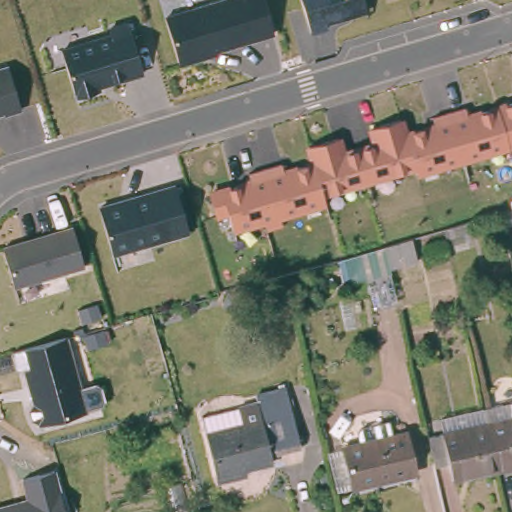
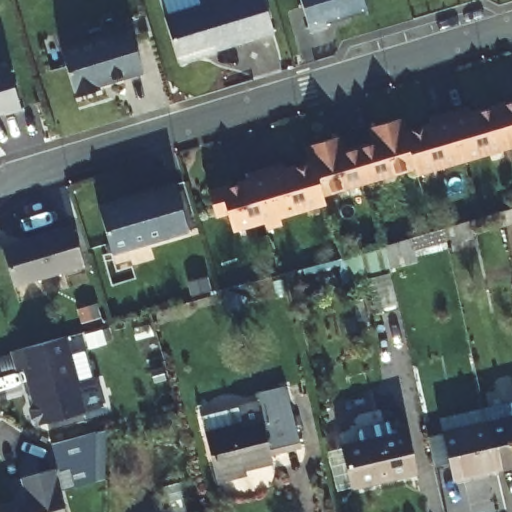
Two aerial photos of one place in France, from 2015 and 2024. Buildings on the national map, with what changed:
unchanged [(220,0),(263,0),(273,32),(235,44),(204,53),(204,56),(179,63),(165,17),(220,0)]
unchanged [(366,9),(325,22),(327,26),(310,31),(300,0),(363,0),(366,9)]
unchanged [(76,45),(111,34),(109,27),(128,22),(143,72),(97,85),(99,90),(89,93),(75,97),(61,49),(76,45)]
unchanged [(9,68),(21,108),(3,113),(2,109),(0,110),(0,71),(9,68)]
unchanged [(418,176),(417,169),(324,198),(326,205),(281,218),(282,225),(266,229),(264,223),(234,232),(229,215),(217,219),(208,191),(250,178),(248,172),(281,163),(283,167),(309,160),(305,147),(341,138),(344,147),(371,140),(367,129),(404,119),(407,128),(434,122),(432,117),(464,107),(466,111),(496,103),(512,99),(512,148),(510,149),(418,176)]
unchanged [(119,201),(175,185),(189,231),(132,248),(112,254),(98,207),(119,201)]
unchanged [(508,214),(508,210),(512,209),(512,225),(511,225),(508,214)]
unchanged [(72,226),(84,265),(14,286),(2,247),(72,226)]
unchanged [(394,243),(398,259),(399,265),(377,272),(361,277),(354,255),(394,243)]
unchanged [(65,337),(85,412),(39,425),(39,422),(32,418),(30,410),(34,403),(24,368),(17,370),(12,351),(65,337)]
unchanged [(257,412),(285,405),(297,447),(268,453),(270,461),(214,476),(197,417),(255,401),(257,412)]
unchanged [(495,462),(484,421),(512,414),(512,458),(495,462)]
unchanged [(484,421),(495,462),(450,473),(446,458),(432,461),(426,437),(484,421)]
new [(63,489),(51,444),(108,430),(106,479),(63,489)]
unchanged [(402,434),(413,472),(350,489),(340,449),(402,434)]
unchanged [(22,478),(53,469),(64,512),(0,512),(0,506),(27,498),(22,478)]

